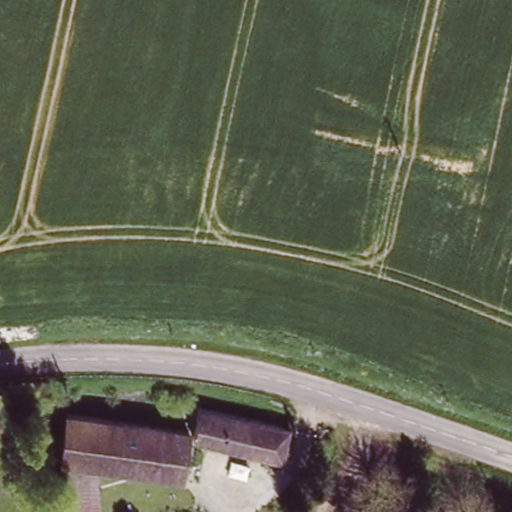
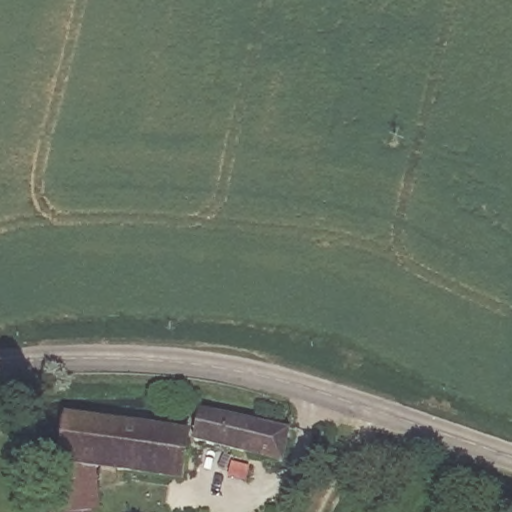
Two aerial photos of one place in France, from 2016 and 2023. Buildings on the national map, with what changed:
unchanged [(190,447),(182,486),(99,474),(98,512),(62,512),(60,468),(65,414),(193,428),(200,408),(284,430),(281,465),(190,447)]

